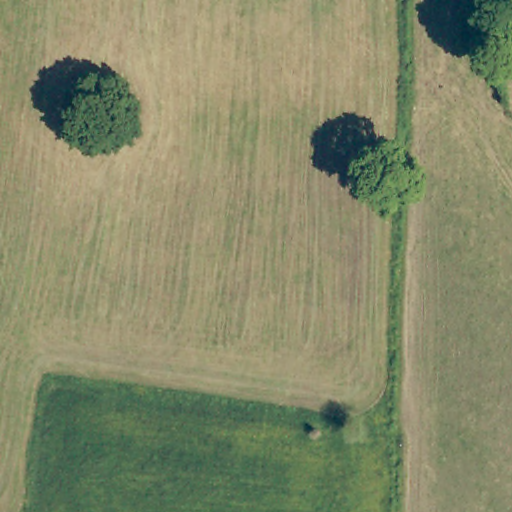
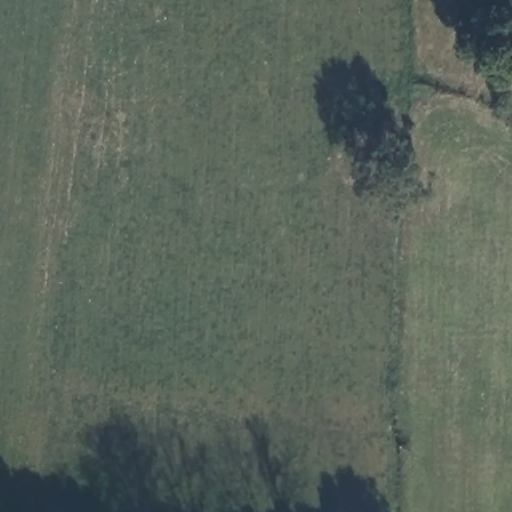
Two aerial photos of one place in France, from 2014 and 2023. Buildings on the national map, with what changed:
[]

